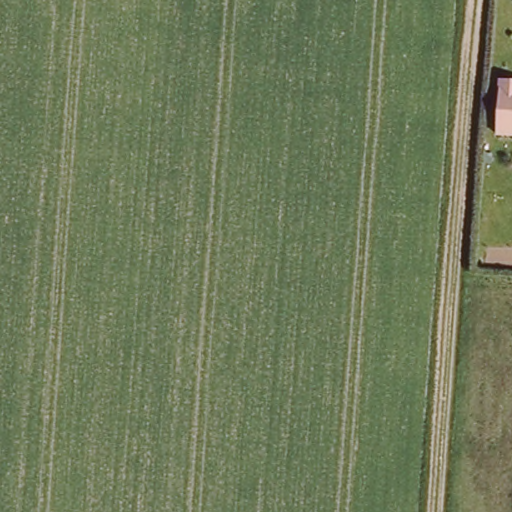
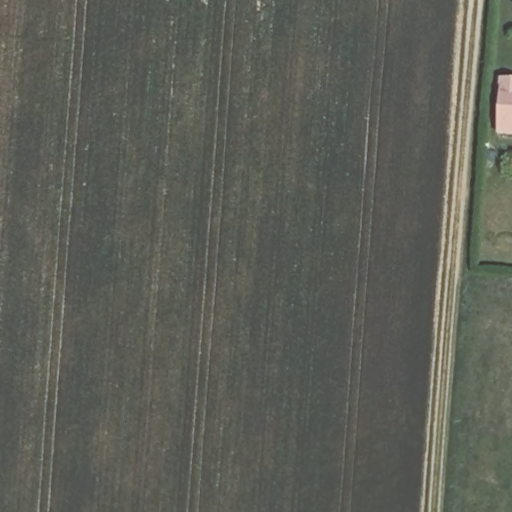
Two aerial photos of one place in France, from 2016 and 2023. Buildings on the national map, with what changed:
unchanged [(512,76),(512,131),(498,129),(502,75),(512,76)]

